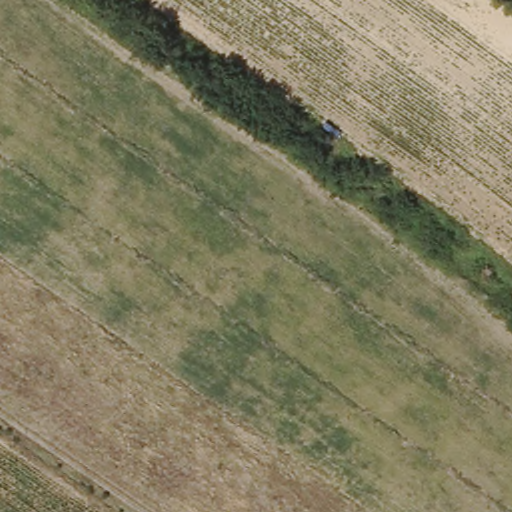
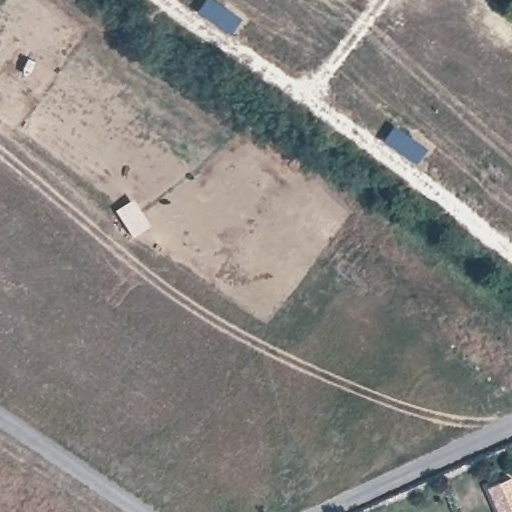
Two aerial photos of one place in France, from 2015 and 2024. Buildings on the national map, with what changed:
new [(512,475),(512,512),(503,512),(491,484),(512,475)]

